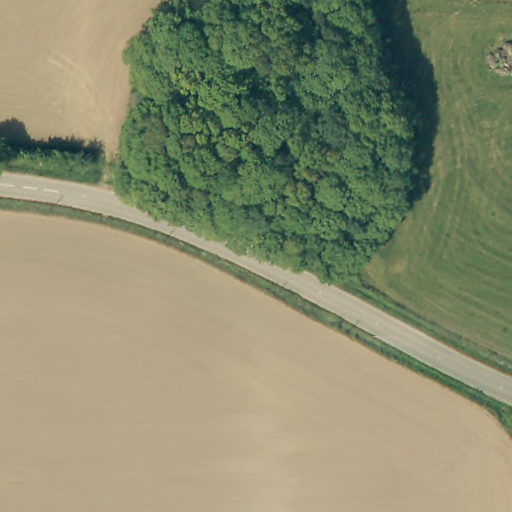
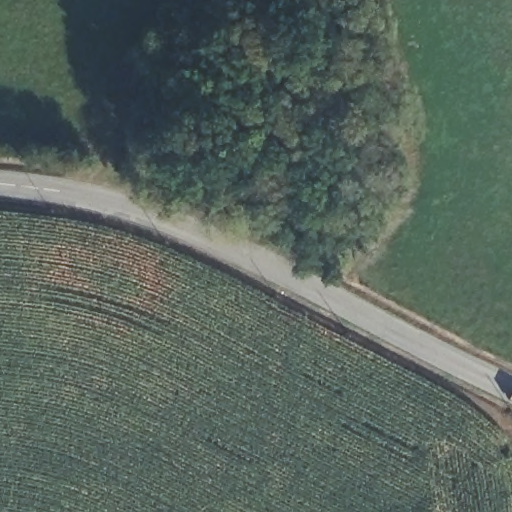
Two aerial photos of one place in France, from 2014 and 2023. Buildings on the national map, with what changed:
[]

